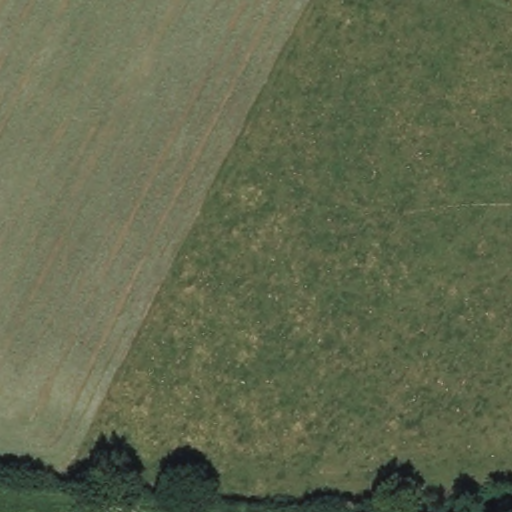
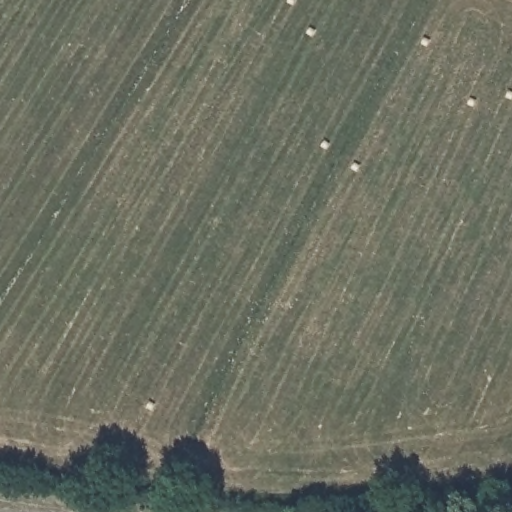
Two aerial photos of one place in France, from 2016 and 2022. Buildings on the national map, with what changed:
[]

